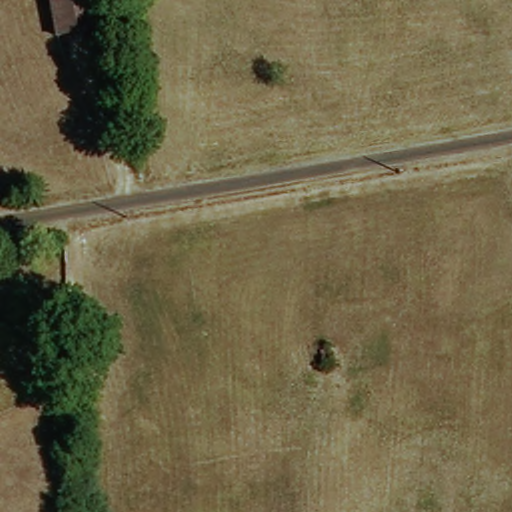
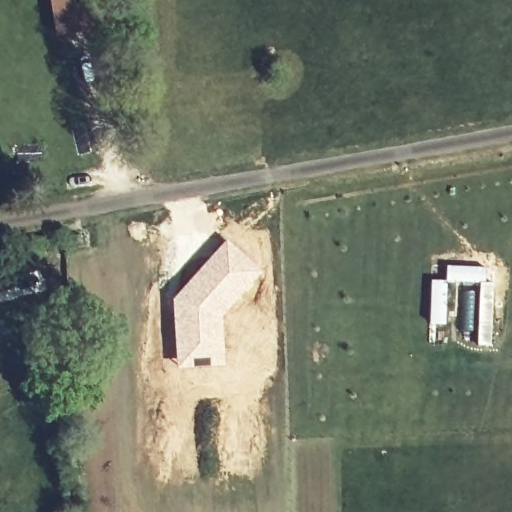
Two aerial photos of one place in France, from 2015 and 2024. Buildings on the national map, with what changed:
unchanged [(54,36),(50,0),(89,0),(93,32),(54,36)]
new [(226,237),(263,271),(223,317),(224,365),(177,367),(171,298),(226,237)]

